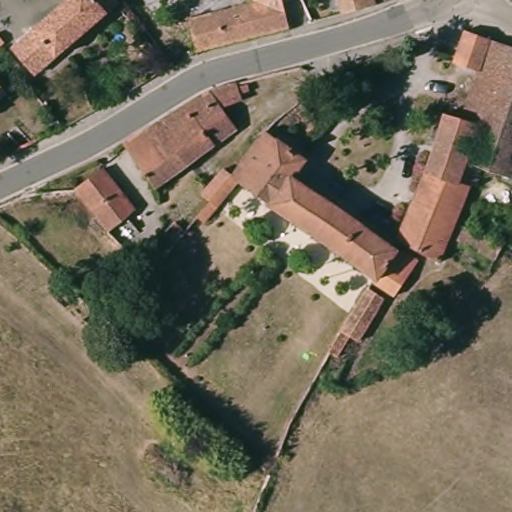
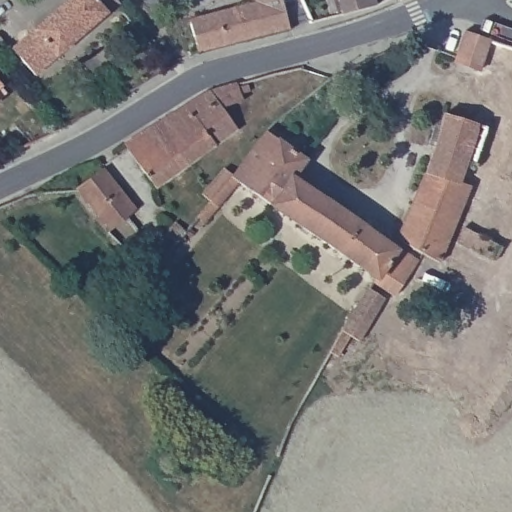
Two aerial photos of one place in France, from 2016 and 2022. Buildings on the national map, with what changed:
unchanged [(39,72),(16,45),(23,39),(66,0),(122,0),(119,1),(39,72)]
unchanged [(201,50),(193,17),(261,0),(286,0),(294,26),(201,50)]
unchanged [(345,13),(342,0),(378,0),(379,4),(345,13)]
unchanged [(422,169),(430,145),(425,144),(434,118),(439,120),(443,109),(459,114),(475,64),(452,56),(454,51),(463,25),(470,28),(495,36),(511,42),(495,89),(491,99),(483,122),(477,120),(465,155),(470,156),(478,160),(473,174),(463,197),(442,189),(434,207),(434,208),(409,199),(422,169)]
unchanged [(1,31),(12,44),(3,52),(0,49),(0,33),(1,31)]
unchanged [(512,174),(478,160),(470,156),(483,122),(491,99),(495,89),(511,42),(512,42),(512,174)]
unchanged [(233,81),(243,101),(222,109),(236,129),(178,170),(176,166),(146,128),(204,91),(233,81)]
unchanged [(3,94),(0,97),(0,90),(3,94)]
unchanged [(402,245),(416,252),(395,287),(373,273),(300,222),(291,215),(235,178),(201,218),(193,212),(207,195),(200,189),(223,163),(230,168),(265,125),(306,156),(294,174),(391,244),(399,249),(402,245)]
unchanged [(146,128),(176,166),(178,170),(153,188),(123,144),(146,128)]
unchanged [(100,164),(134,207),(126,212),(135,223),(117,239),(104,227),(103,222),(73,183),(100,164)]
unchanged [(434,208),(434,207),(442,189),(463,197),(440,254),(421,246),(394,236),(409,199),(434,208)]
unchanged [(465,220),(501,238),(495,251),(458,234),(465,220)]
unchanged [(179,223),(187,229),(172,248),(166,243),(171,237),(168,234),(179,223)]
unchanged [(369,280),(386,289),(360,334),(351,329),(339,349),(335,347),(328,359),(331,361),(325,370),(318,366),(344,323),(369,280)]

